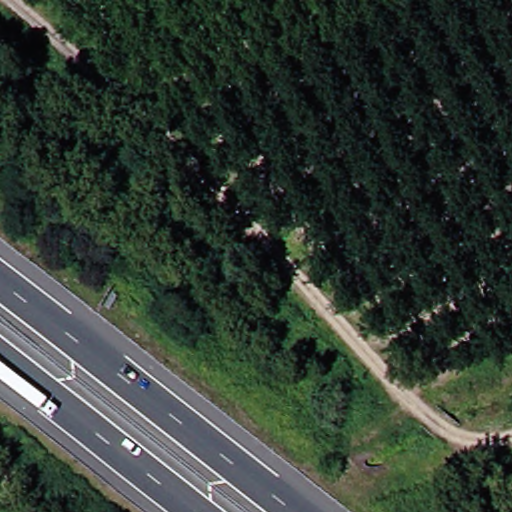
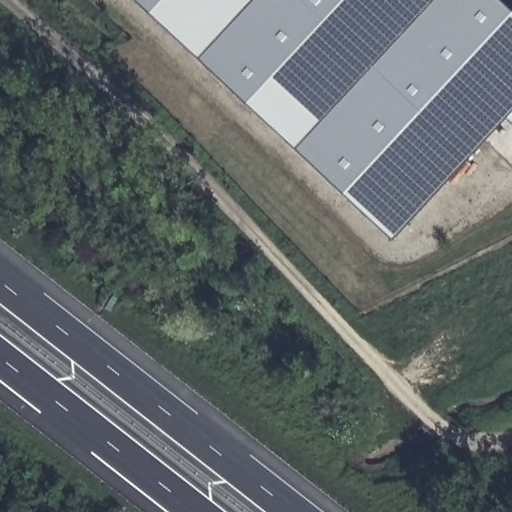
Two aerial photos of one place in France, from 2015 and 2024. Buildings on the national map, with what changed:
new [(393,240),(136,0),(503,0),(512,9),(512,122),(507,118),(393,240)]

